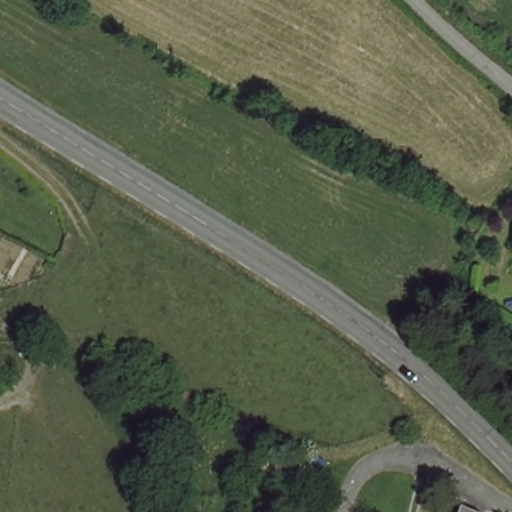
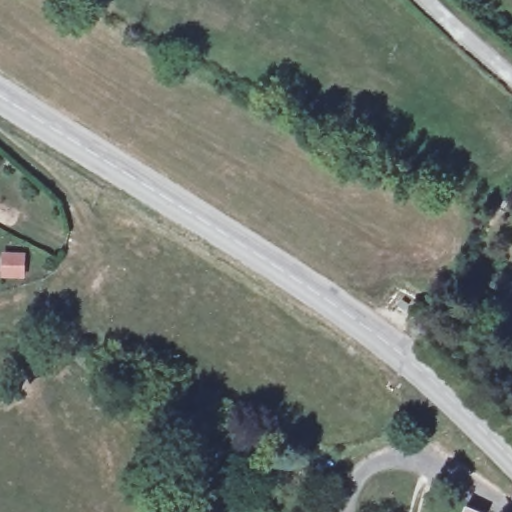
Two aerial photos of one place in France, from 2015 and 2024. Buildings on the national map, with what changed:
new [(22,256),(22,276),(2,276),(2,256),(22,256)]
unchanged [(477,512),(470,512),(471,510),(477,512)]

